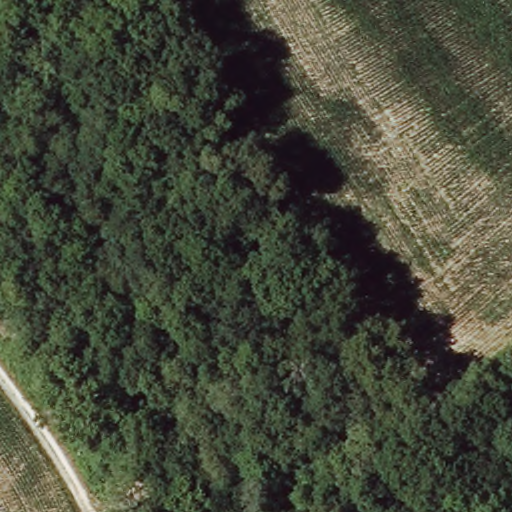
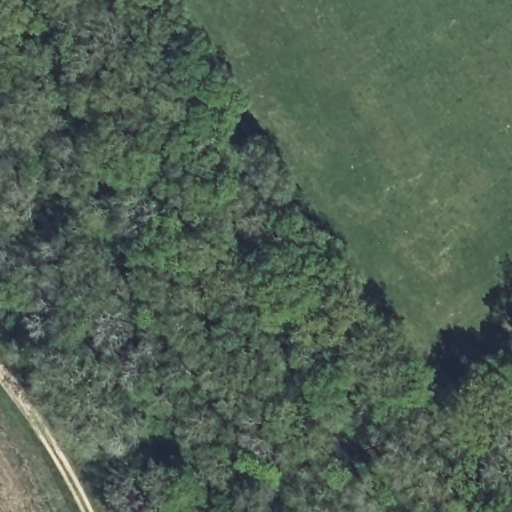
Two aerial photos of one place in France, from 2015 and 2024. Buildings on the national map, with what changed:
[]

